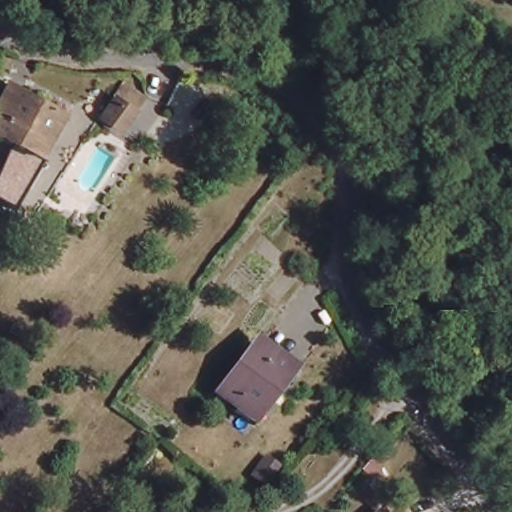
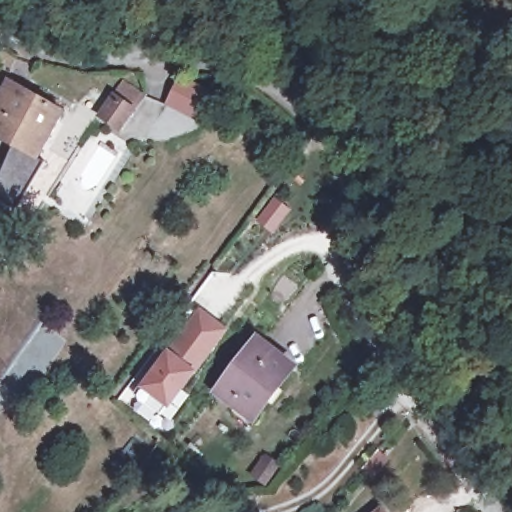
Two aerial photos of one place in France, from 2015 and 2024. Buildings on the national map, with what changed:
unchanged [(38,156),(0,136),(0,90),(6,78),(23,88),(63,110),(38,156)]
unchanged [(101,115),(114,94),(123,82),(141,93),(133,106),(119,127),(101,115)]
new [(259,221),(262,217),(274,201),(286,210),(274,226),(271,231),(259,221)]
new [(149,371),(161,354),(166,358),(181,337),(199,313),(223,330),(204,354),(161,412),(133,392),(149,371)]
unchanged [(287,368),(254,411),(223,387),(256,345),(287,368)]
unchanged [(376,512),(363,512),(371,505),(376,512)]

